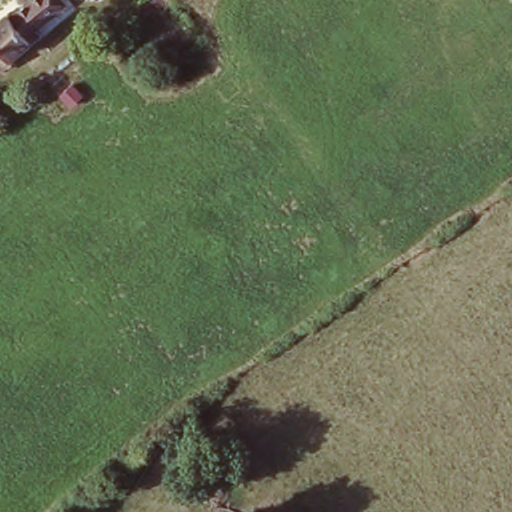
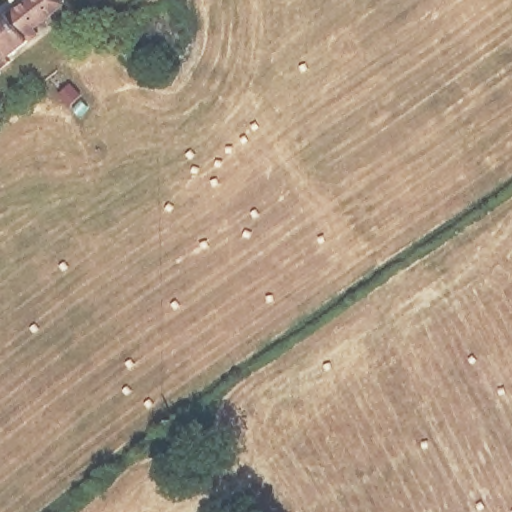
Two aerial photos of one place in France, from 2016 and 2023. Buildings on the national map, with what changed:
unchanged [(40,26),(45,31),(13,55),(16,60),(3,68),(0,64),(0,14),(19,0),(20,2),(24,0),(67,0),(69,3),(40,26)]

